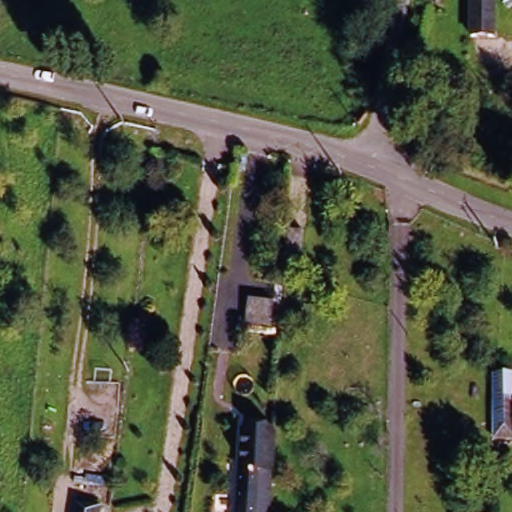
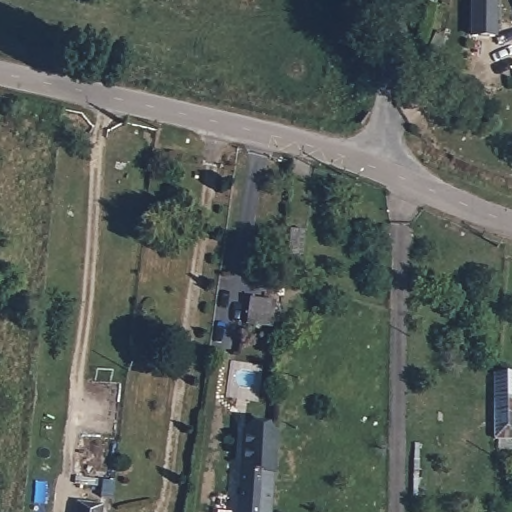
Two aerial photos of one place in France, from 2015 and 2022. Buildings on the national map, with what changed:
unchanged [(362,251),(377,252),(377,283),(360,282),(362,251)]
unchanged [(512,379),(512,441),(498,440),(489,440),(493,377),(500,377),(512,379)]
unchanged [(257,439),(289,441),(288,457),(285,512),(253,512),(257,439)]
unchanged [(73,508),(98,510),(98,512),(73,512),(73,508)]

